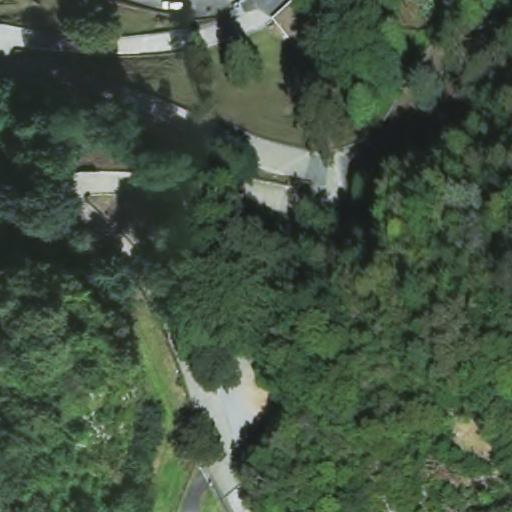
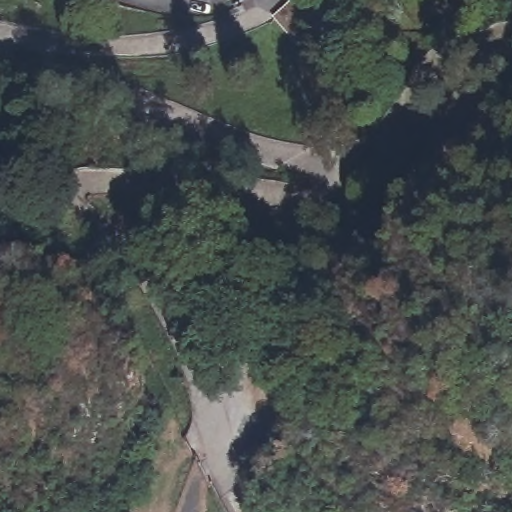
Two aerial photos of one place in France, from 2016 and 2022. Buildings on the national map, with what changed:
unchanged [(290,41),(275,24),(276,11),(288,0),(305,0),(319,18),(290,41)]

